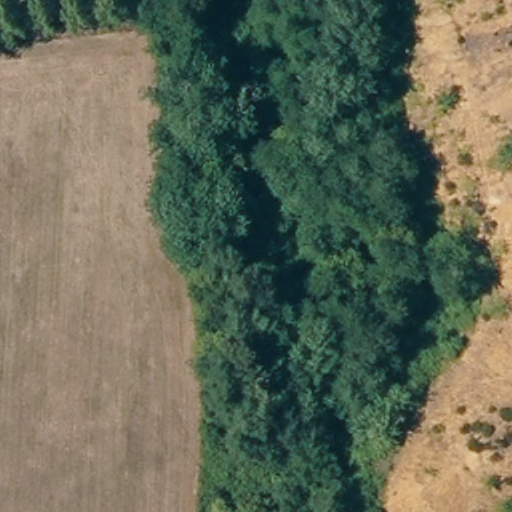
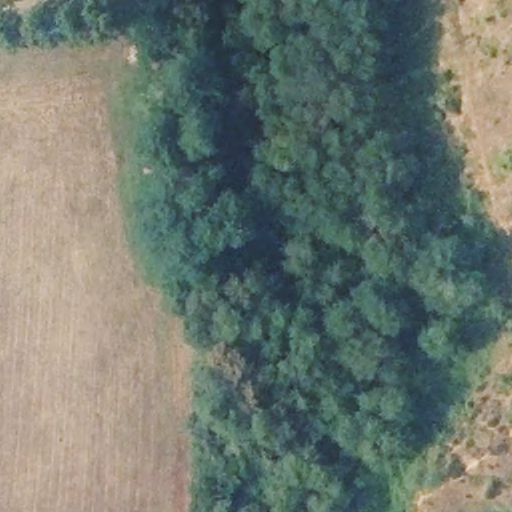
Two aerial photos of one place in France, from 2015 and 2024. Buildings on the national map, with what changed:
unchanged [(0,0),(6,0),(0,2),(0,0)]

